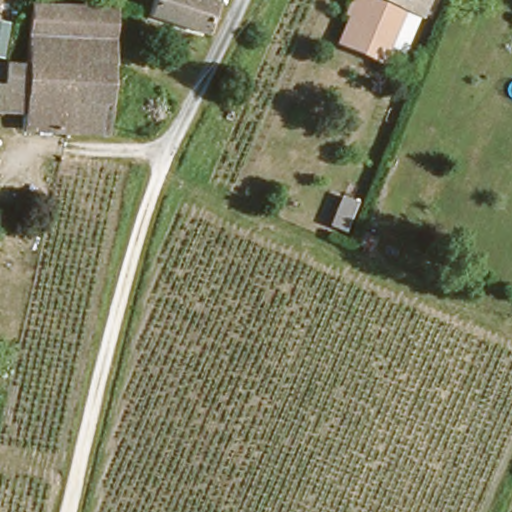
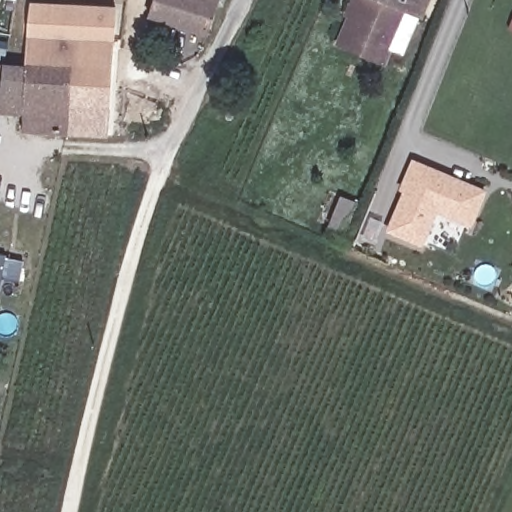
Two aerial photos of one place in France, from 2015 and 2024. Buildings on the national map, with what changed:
unchanged [(25,58),(29,0),(37,0),(115,5),(108,132),(69,129),(72,63),(25,60),(25,58)]
unchanged [(148,16),(153,0),(218,0),(206,37),(148,16)]
unchanged [(413,10),(400,4),(376,58),(331,39),(348,0),(418,0),(413,10)]
unchanged [(69,129),(21,127),(22,110),(0,108),(0,59),(25,60),(72,63),(69,129)]
new [(472,227),(439,213),(428,245),(386,231),(402,192),(398,190),(412,158),(487,192),(472,227)]
unchanged [(342,198),(356,204),(343,234),(329,227),(342,198)]

